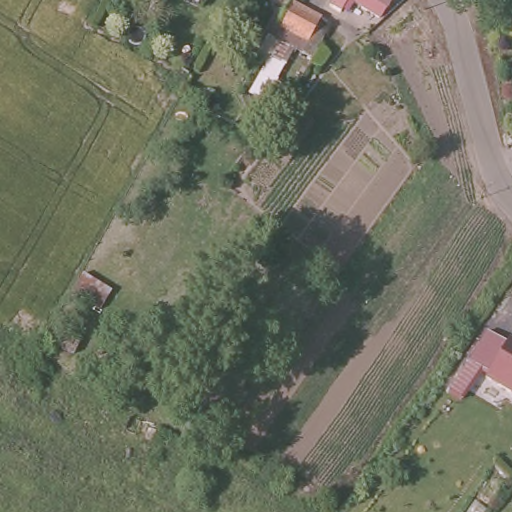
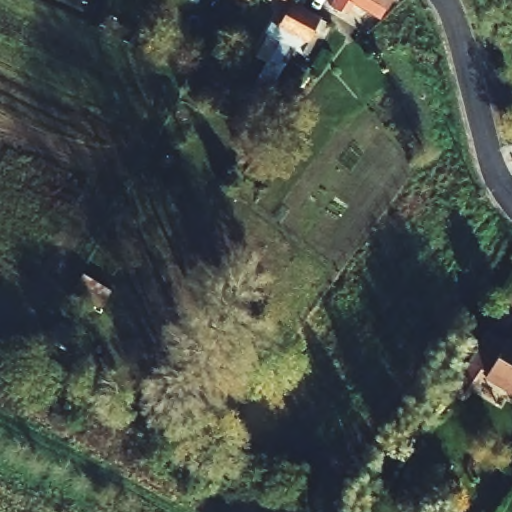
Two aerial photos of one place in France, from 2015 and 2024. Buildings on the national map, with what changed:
unchanged [(240,9),(225,1),(226,0),(245,0),(240,9)]
unchanged [(281,2),(277,0),(282,0),(281,2)]
unchanged [(387,13),(377,8),(371,19),(346,4),(338,18),(327,11),(334,0),(394,0),(387,13)]
unchanged [(305,44),(278,30),(291,7),(296,10),(318,24),(305,44)]
unchanged [(116,287),(99,321),(63,304),(79,268),(116,287)]
unchanged [(506,344),(510,338),(512,340),(512,394),(479,376),(462,400),(448,391),(486,333),(506,344)]

